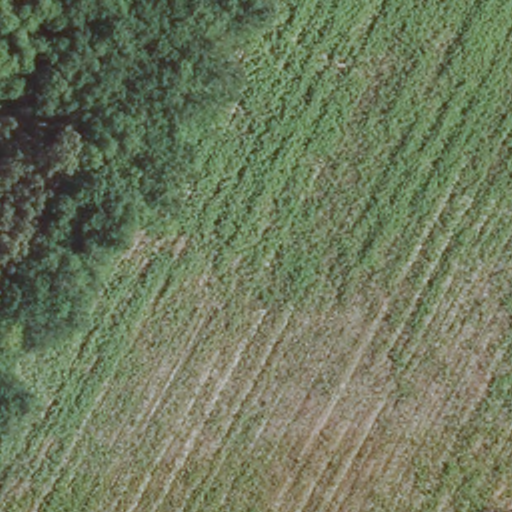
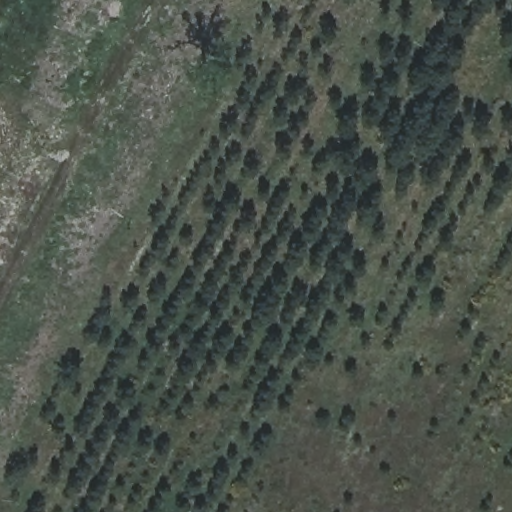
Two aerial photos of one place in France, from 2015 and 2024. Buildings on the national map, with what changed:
[]

